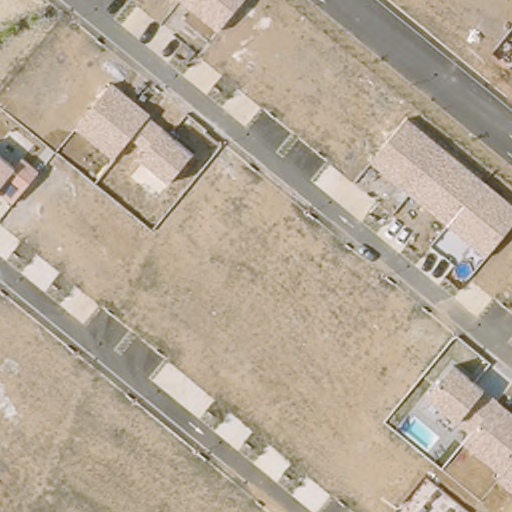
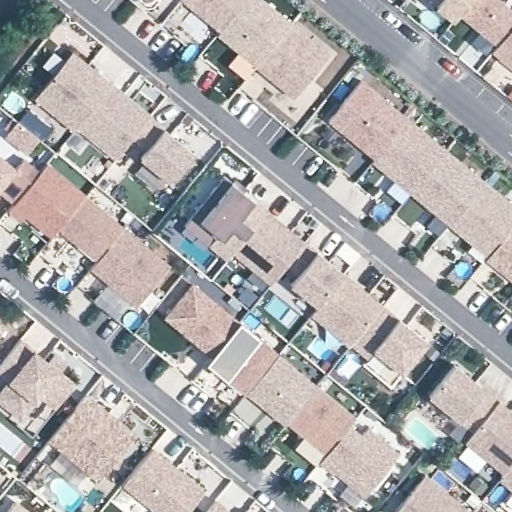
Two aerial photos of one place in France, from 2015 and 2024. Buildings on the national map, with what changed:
unchanged [(183,0),(244,0),(219,31),(183,0)]
new [(331,55),(293,99),(257,66),(216,35),(219,31),(244,0),(266,0),(293,22),(331,55)]
new [(512,30),(499,46),(458,14),(452,20),(436,6),(440,1),(438,0),(503,0),(512,7),(512,30)]
unchanged [(512,30),(512,68),(494,53),(512,30)]
new [(73,131),(35,98),(73,52),(74,52),(112,82),(76,128),(73,131)]
new [(377,157),(329,120),(363,80),(409,116),(377,157)]
unchanged [(171,184),(140,158),(146,150),(132,138),(115,156),(76,128),(112,82),(151,114),(149,117),(166,130),(194,154),(171,184)]
unchanged [(372,164),(409,116),(512,202),(512,226),(486,256),(372,164)]
unchanged [(15,200),(1,187),(0,188),(0,155),(15,167),(24,157),(40,171),(15,200)]
new [(59,230),(53,235),(26,214),(38,199),(26,187),(40,171),(47,162),(86,195),(59,230)]
new [(227,175),(270,210),(235,252),(229,259),(211,244),(186,224),(195,214),(227,175)]
new [(139,305),(91,268),(98,260),(59,230),(86,195),(171,264),(139,305)]
new [(270,210),(309,242),(290,265),(274,284),(235,252),(270,210)]
new [(512,278),(486,256),(511,226),(512,227),(512,278)]
new [(309,242),(347,274),(320,306),(293,284),(301,275),(290,265),(309,242)]
unchanged [(429,342),(403,373),(374,350),(367,359),(353,346),(345,356),(306,324),(314,315),(320,306),(347,274),(386,306),(400,316),(429,342)]
new [(195,284),(241,322),(215,354),(168,316),(195,284)]
new [(215,354),(241,322),(242,321),(281,353),(251,390),(248,395),(209,362),(215,354)]
new [(5,331),(0,337),(0,327),(5,331)]
new [(21,387),(8,376),(32,347),(59,369),(65,362),(71,366),(77,371),(73,375),(70,379),(86,391),(43,443),(26,430),(2,410),(7,405),(21,387)]
new [(281,353),(320,386),(290,422),(251,390),(281,353)]
unchanged [(502,473),(465,442),(475,431),(429,396),(455,364),(487,390),(512,411),(512,490),(497,478),(502,473)]
new [(320,386),(359,418),(353,425),(329,455),(290,422),(320,386)]
new [(88,392),(138,433),(100,480),(49,439),(88,392)]
new [(329,455),(353,425),(365,435),(371,428),(403,455),(367,496),(347,480),(352,475),(341,466),(335,472),(323,461),(329,455)]
new [(153,445),(205,488),(187,512),(153,512),(120,485),(153,445)]
unchanged [(471,512),(395,512),(427,473),(472,511),(471,512)]
new [(16,500),(30,512),(6,512),(16,500)]
new [(226,508),(230,512),(222,512),(226,508)]
new [(472,511),(473,512),(471,512),(472,511)]

